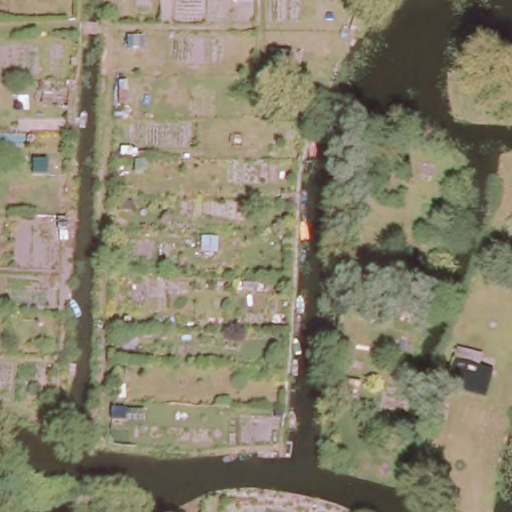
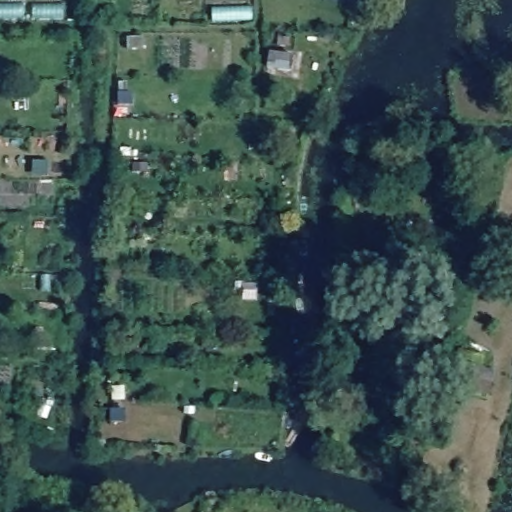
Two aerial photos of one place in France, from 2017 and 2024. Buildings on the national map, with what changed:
unchanged [(265,55),(268,39),(286,42),(285,59),(265,55)]
unchanged [(452,383),(461,356),(496,367),(487,394),(477,391),(463,386),(452,383)]

